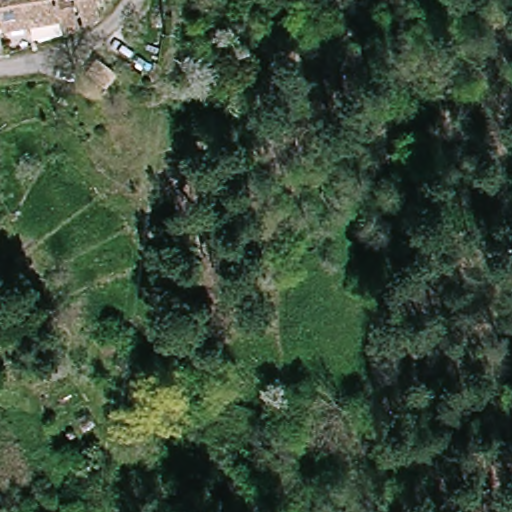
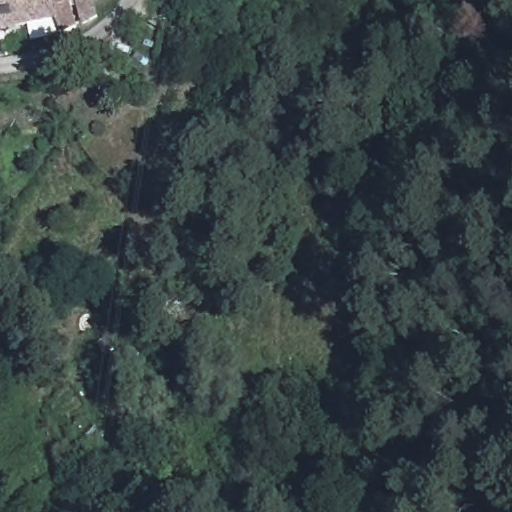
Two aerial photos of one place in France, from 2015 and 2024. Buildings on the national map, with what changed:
unchanged [(61,35),(57,22),(0,33),(0,0),(87,0),(92,29),(61,35)]
unchanged [(106,84),(95,95),(78,78),(84,73),(90,67),(106,84)]

